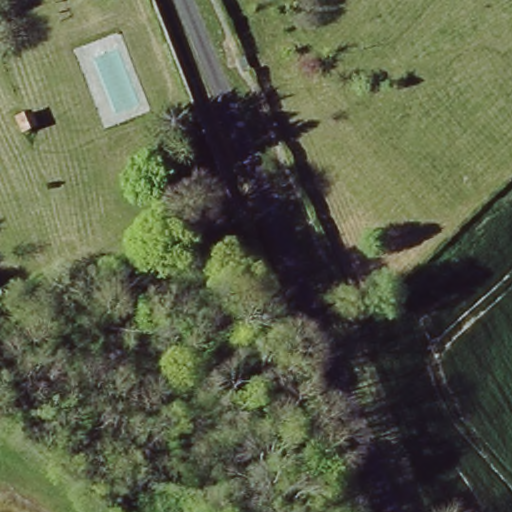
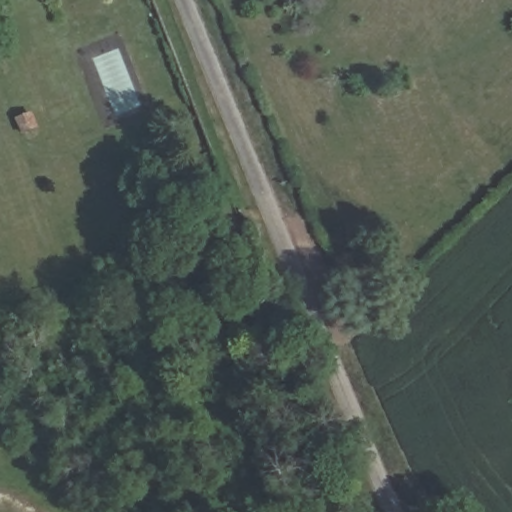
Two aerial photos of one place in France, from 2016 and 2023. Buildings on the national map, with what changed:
unchanged [(213,201),(185,212),(178,195),(206,184),(213,201)]

